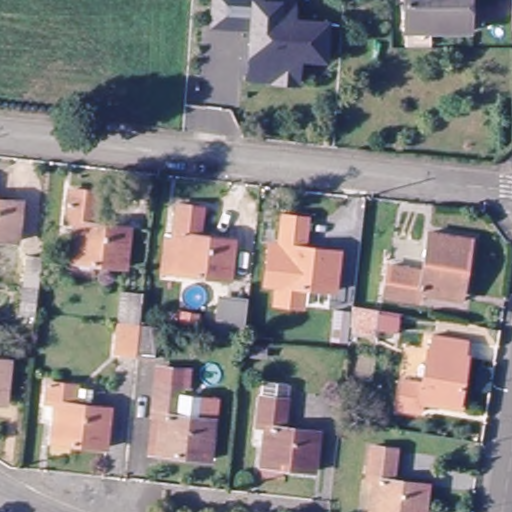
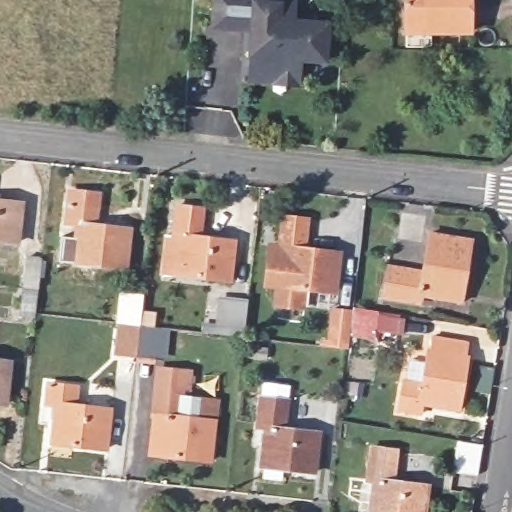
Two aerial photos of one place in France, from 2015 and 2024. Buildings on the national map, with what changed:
unchanged [(278,84),(279,70),(271,77),(261,77),(254,69),(255,57),(260,52),(253,43),(262,35),(257,30),(258,23),(217,20),(219,0),(298,0),(297,19),(332,22),(329,59),(302,56),(300,69),(299,85),(278,84)]
unchanged [(472,30),(408,30),(408,0),(470,0),(472,30)]
unchanged [(102,230),(134,233),(130,273),(80,267),(84,229),(73,227),(76,192),(104,195),(102,230)]
unchanged [(18,247),(0,245),(0,205),(22,208),(18,247)]
unchanged [(166,238),(177,239),(179,209),(209,212),(206,241),(240,245),(235,285),(184,279),(163,276),(166,238)]
unchanged [(282,305),(284,291),(272,290),(278,231),(308,234),(306,253),(339,257),(335,297),(304,293),(304,308),(282,305)]
unchanged [(451,293),(426,290),(424,297),(389,291),(394,263),(388,262),(390,245),(402,247),(400,264),(429,268),(435,231),(476,237),(468,288),(467,296),(451,293)]
unchanged [(20,317),(24,287),(25,288),(29,257),(43,259),(39,289),(36,319),(20,317)]
unchanged [(158,360),(137,357),(119,355),(120,351),(117,350),(120,322),(124,292),(144,294),(140,325),(160,327),(158,360)]
unchanged [(205,323),(219,325),(223,297),(249,300),(245,338),(219,335),(204,332),(205,323)]
unchanged [(350,341),(350,344),(333,342),(337,311),(353,313),(354,308),(378,312),(375,332),(373,345),(350,341)]
unchanged [(470,353),(474,354),(467,404),(428,397),(426,410),(407,407),(412,377),(429,380),(434,348),(438,347),(440,334),(473,339),(470,353)]
unchanged [(270,360),(252,357),(252,345),(271,347),(270,360)]
unchanged [(152,416),(155,377),(157,360),(165,361),(165,360),(196,365),(193,383),(185,382),(183,417),(214,421),(210,460),(160,453),(149,452),(152,416)]
unchanged [(7,407),(0,407),(0,365),(10,366),(7,407)]
unchanged [(260,437),(267,383),(294,386),(294,397),(289,440),(323,443),(319,482),(269,476),(270,456),(259,455),(260,437)]
unchanged [(78,387),(79,388),(94,390),(93,408),(111,410),(107,448),(56,445),(58,420),(45,418),(47,405),(49,385),(78,387)]
unchanged [(371,445),(400,448),(395,486),(428,490),(425,512),(374,512),(376,498),(363,497),(364,483),(371,445)]

